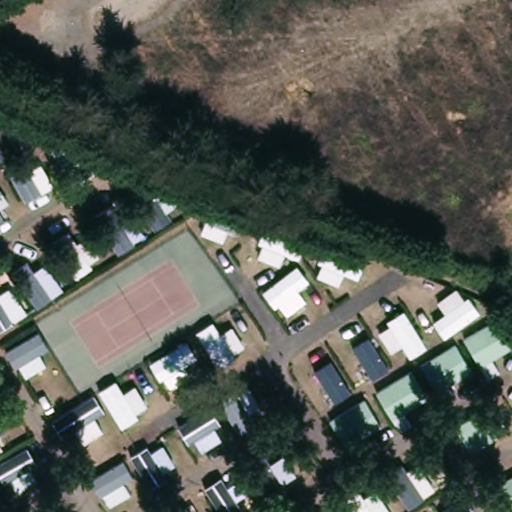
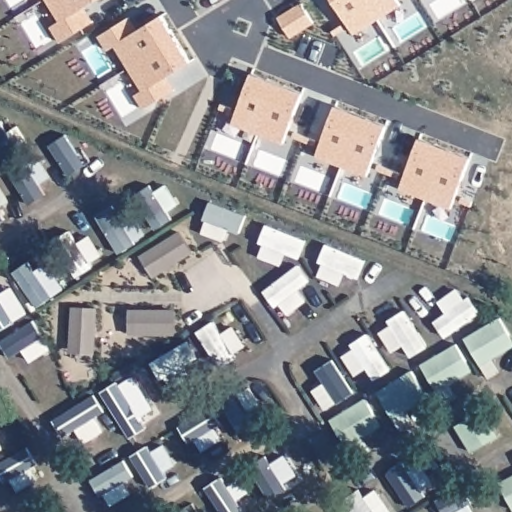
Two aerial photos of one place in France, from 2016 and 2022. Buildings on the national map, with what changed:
new [(76,29),(57,41),(48,26),(56,22),(42,0),(93,0),(79,8),(88,21),(76,29)]
new [(401,4),(354,33),(334,0),(398,0),(401,4)]
new [(301,3),(313,22),(290,37),(278,17),(301,3)]
new [(161,98),(141,110),(133,95),(140,91),(113,46),(105,51),(96,36),(115,25),(127,18),(135,31),(159,16),(188,63),(164,78),(172,91),(161,98)]
new [(252,73),(303,92),(283,142),(233,123),(252,73)]
new [(336,106),(387,125),(367,175),(316,156),(336,106)]
new [(420,138),(471,157),(451,207),(401,188),(420,138)]

